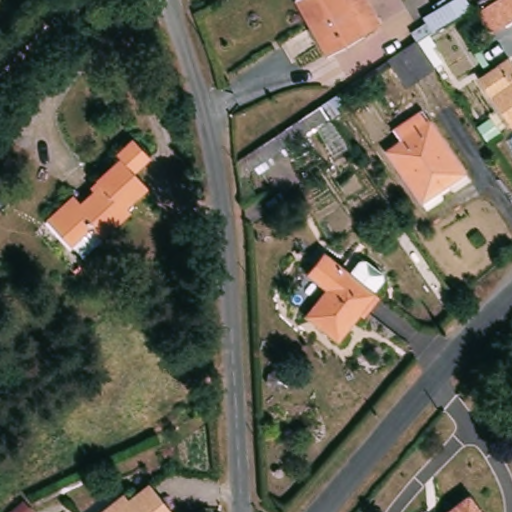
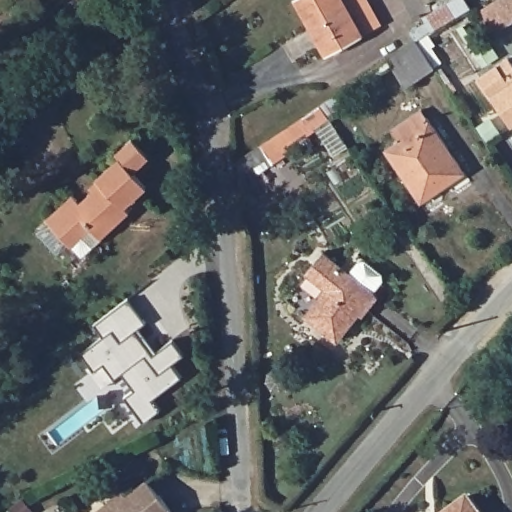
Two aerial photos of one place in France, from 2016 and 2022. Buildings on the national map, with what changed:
unchanged [(366,28),(331,50),(299,0),(348,0),(366,28)]
unchanged [(485,5),(492,0),(512,0),(512,19),(500,27),(494,31),(479,10),(485,5)]
unchanged [(435,38),(431,30),(447,21),(451,29),(435,38)]
unchanged [(437,69),(411,88),(394,65),(422,49),(437,69)]
unchanged [(512,79),(512,123),(508,126),(473,79),(491,67),(504,85),(512,79)]
unchanged [(467,180),(423,210),(385,155),(400,145),(394,138),(423,120),(467,180)]
unchanged [(132,140),(149,160),(133,175),(146,189),(125,209),(129,214),(100,240),(90,230),(70,249),(45,221),(72,197),(79,205),(99,186),(95,181),(119,160),(115,155),(132,140)]
unchanged [(377,295),(343,342),(309,317),(326,291),(306,277),(324,254),(377,295)]
new [(80,354),(102,337),(93,325),(128,299),(146,323),(139,328),(157,351),(173,340),(184,355),(173,364),(182,376),(153,399),(161,410),(144,423),(124,397),(134,390),(122,374),(114,380),(102,389),(90,373),(93,371),(80,354)]
unchanged [(174,476),(160,487),(147,470),(139,476),(134,469),(132,465),(153,450),(155,453),(174,476)]
unchanged [(123,512),(151,491),(167,512),(123,512)]
unchanged [(480,512),(448,512),(469,496),(480,512)]
unchanged [(119,512),(109,512),(116,507),(119,512)]

